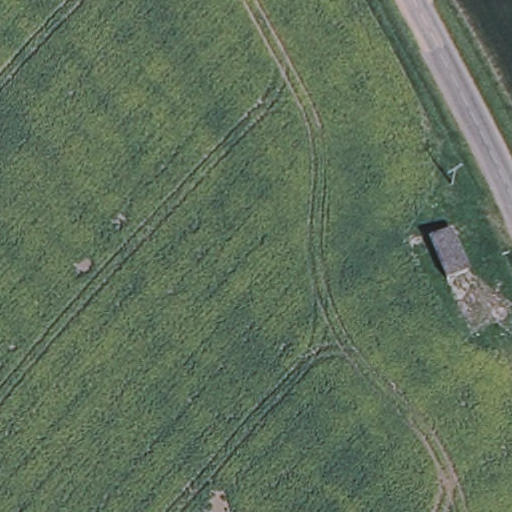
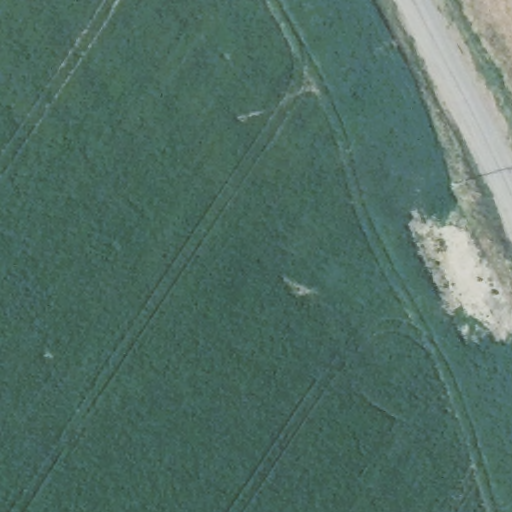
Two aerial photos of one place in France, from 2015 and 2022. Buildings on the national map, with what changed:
unchanged [(472,268),(449,277),(433,232),(454,225),(472,268)]

